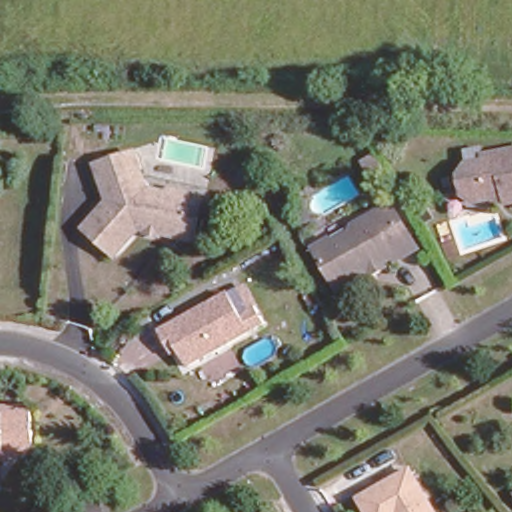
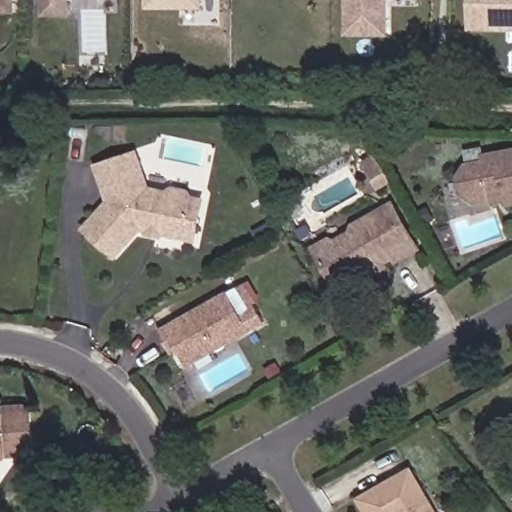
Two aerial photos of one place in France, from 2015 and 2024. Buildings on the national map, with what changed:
new [(0,14),(0,0),(14,0),(13,14),(0,14)]
new [(40,16),(40,0),(69,0),(68,16),(40,16)]
new [(193,10),(145,11),(145,0),(195,0),(194,2),(193,10)]
new [(350,33),(350,0),(390,0),(390,33),(350,33)]
new [(467,0),(512,0),(512,32),(466,30),(467,0)]
unchanged [(149,232),(149,219),(141,219),(113,245),(81,216),(101,191),(95,149),(133,141),(142,181),(168,182),(168,176),(185,178),(191,191),(205,194),(203,206),(195,233),(165,230),(165,233),(149,232)]
unchanged [(502,193),(501,187),(487,189),(489,196),(470,200),(464,196),(458,192),(453,175),(460,164),(476,161),(475,154),(512,147),(512,199),(503,200),(502,193)]
unchanged [(393,184),(380,191),(370,173),(366,164),(379,157),(383,165),(383,166),(384,167),(393,184)]
unchanged [(361,280),(357,275),(341,283),(318,242),(333,233),(337,236),(354,228),(356,220),(392,200),(417,245),(383,264),(380,261),(369,268),(372,274),(361,280)]
unchanged [(156,331),(225,293),(244,327),(182,362),(173,349),(170,344),(165,347),(156,331)]
unchanged [(22,404),(31,413),(31,436),(28,439),(22,453),(6,454),(0,462),(0,404),(22,404)]
unchanged [(356,498),(403,470),(429,512),(365,512),(356,498)]

